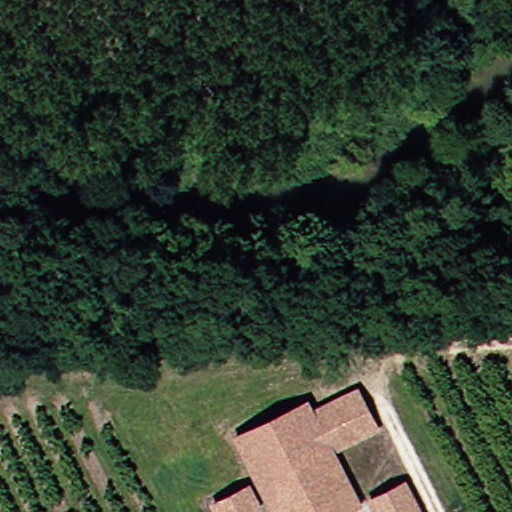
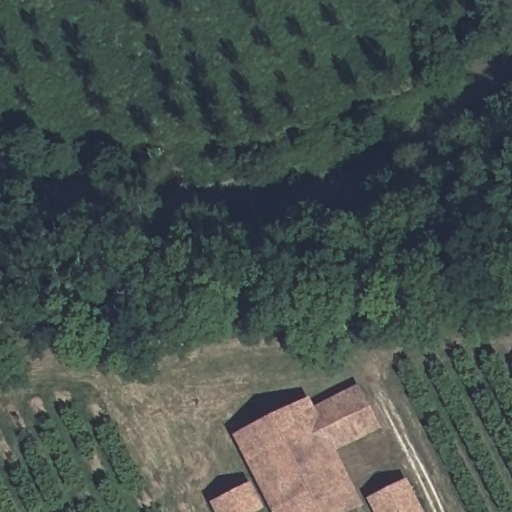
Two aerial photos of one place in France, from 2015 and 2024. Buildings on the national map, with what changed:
unchanged [(275,511),(239,435),(308,401),(313,410),(359,388),(380,430),(333,451),(346,478),(275,511)]
unchanged [(353,512),(275,512),(275,511),(346,478),(361,508),(353,512)]
unchanged [(383,497),(407,486),(420,512),(376,512),(371,503),(383,497)]
unchanged [(251,488),(260,505),(252,508),(254,512),(219,512),(216,505),(251,488)]

